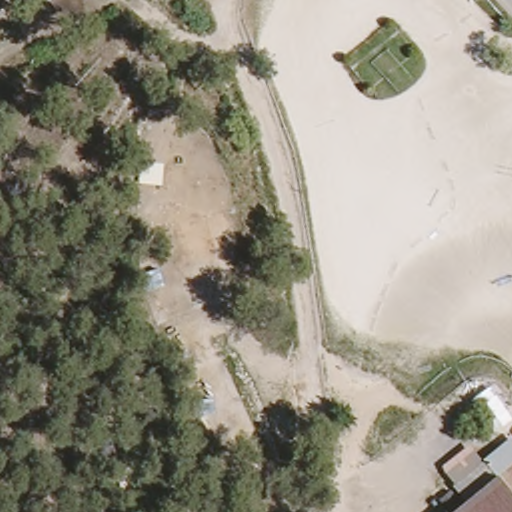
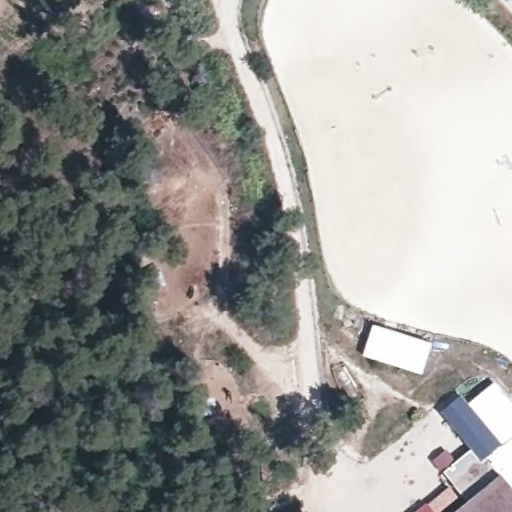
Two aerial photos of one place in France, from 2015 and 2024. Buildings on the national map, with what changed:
new [(432,342),(422,375),(362,355),(372,324),(432,342)]
new [(460,395),(467,403),(493,381),(512,404),(512,436),(510,435),(455,480),(467,495),(463,499),(442,471),(432,460),(445,450),(455,461),(470,450),(439,411),(460,395)]
unchanged [(500,470),(467,495),(455,480),(510,435),(512,436),(512,485),(500,470)]
unchanged [(512,485),(512,512),(447,512),(467,495),(500,470),(512,485)]
new [(447,512),(414,512),(427,503),(449,486),(460,501),(447,512)]

